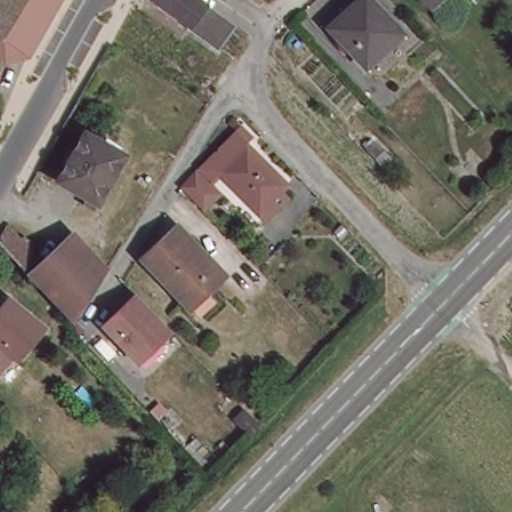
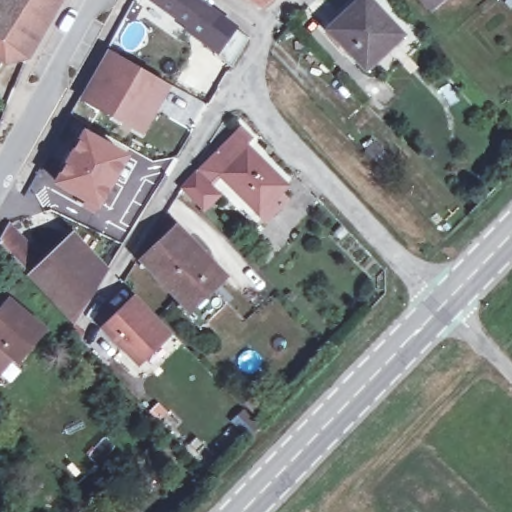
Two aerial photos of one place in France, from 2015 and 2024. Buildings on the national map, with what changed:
unchanged [(57,0),(32,45),(0,57),(0,0),(57,0)]
unchanged [(186,24),(153,0),(193,0),(229,26),(212,46),(185,28),(186,24)]
unchanged [(326,28),(355,0),(368,0),(398,33),(362,67),(326,28)]
new [(112,51),(167,83),(157,101),(153,98),(149,105),(153,108),(140,130),(84,98),(112,51)]
unchanged [(90,195),(58,177),(85,127),(126,150),(97,205),(88,200),(90,195)]
unchanged [(223,173),(215,181),(203,169),(242,128),(254,141),(252,144),(291,185),(264,213),(223,173)]
unchanged [(358,140),(363,135),(377,149),(371,155),(358,140)]
unchanged [(189,162),(216,189),(202,204),(179,180),(189,162)]
unchanged [(2,231),(12,213),(49,256),(75,231),(96,254),(58,291),(37,268),(2,231)]
unchanged [(218,274),(185,307),(139,259),(173,227),(218,274)]
unchanged [(107,266),(78,313),(58,291),(96,254),(107,266)]
unchanged [(170,329),(163,336),(138,360),(103,323),(128,300),(136,293),(170,329)]
unchanged [(7,300),(41,329),(15,359),(10,355),(0,367),(0,308),(7,300)]

